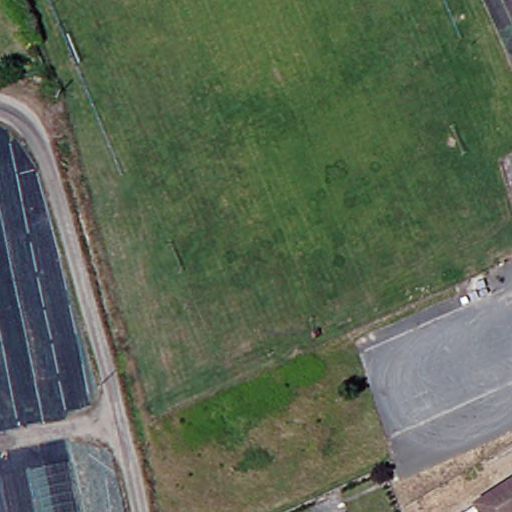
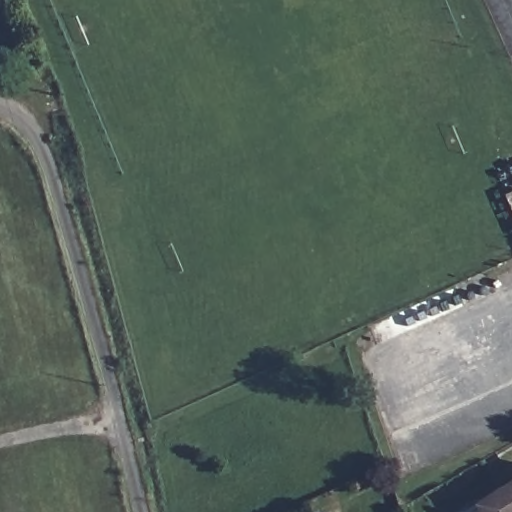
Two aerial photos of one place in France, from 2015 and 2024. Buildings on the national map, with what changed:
demolished [(5,512),(0,487),(40,480),(39,470),(72,463),(83,512),(5,512)]
unchanged [(512,512),(469,512),(512,485),(512,512)]

